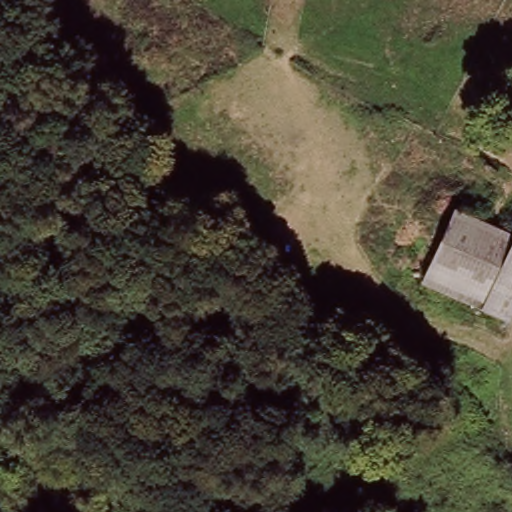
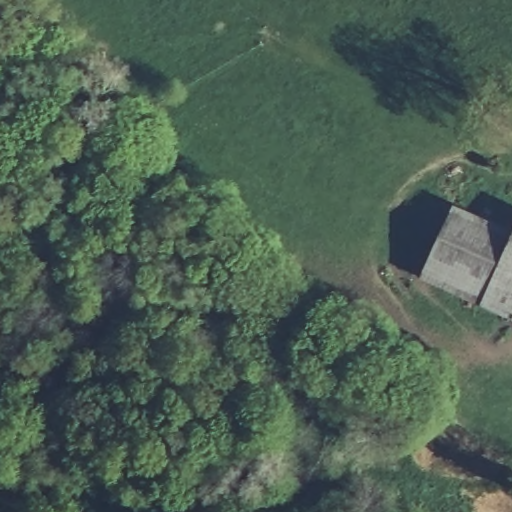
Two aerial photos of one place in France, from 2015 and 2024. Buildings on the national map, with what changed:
unchanged [(421,270),(453,201),(512,229),(512,234),(482,298),(421,270)]
unchanged [(482,298),(512,234),(512,312),(482,298)]

